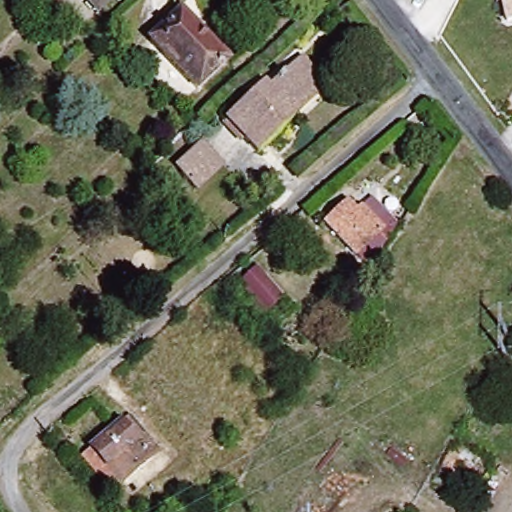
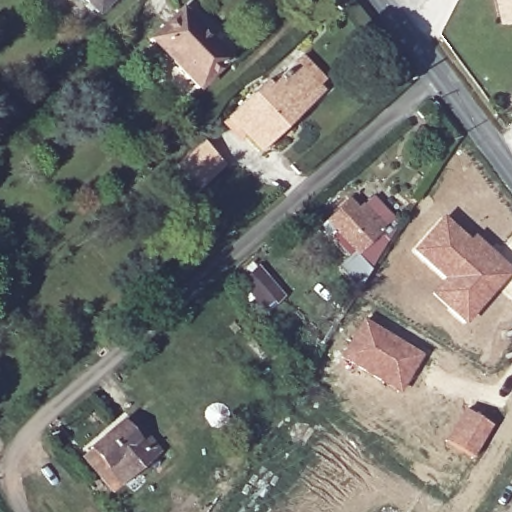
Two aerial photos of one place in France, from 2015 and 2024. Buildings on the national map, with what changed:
unchanged [(98,12),(86,0),(110,0),(98,12)]
unchanged [(503,0),(512,0),(512,20),(508,21),(503,0)]
unchanged [(181,8),(230,58),(197,89),(149,39),(181,8)]
unchanged [(294,62),(316,86),(290,112),(295,117),(258,152),(226,118),(250,95),(255,101),(294,62)]
unchanged [(206,147),(220,161),(194,185),(181,171),(206,147)]
unchanged [(397,222),(369,268),(325,222),(348,199),(359,209),(370,197),(397,222)]
new [(467,238),(472,234),(512,271),(512,272),(463,326),(429,295),(441,280),(409,250),(440,215),(467,238)]
unchanged [(241,282),(256,267),(283,295),(267,310),(241,282)]
new [(361,318),(422,354),(399,394),(338,357),(361,318)]
new [(462,409),(491,426),(472,458),(443,441),(462,409)]
unchanged [(129,415),(160,450),(113,491),(98,473),(106,467),(90,448),(129,415)]

